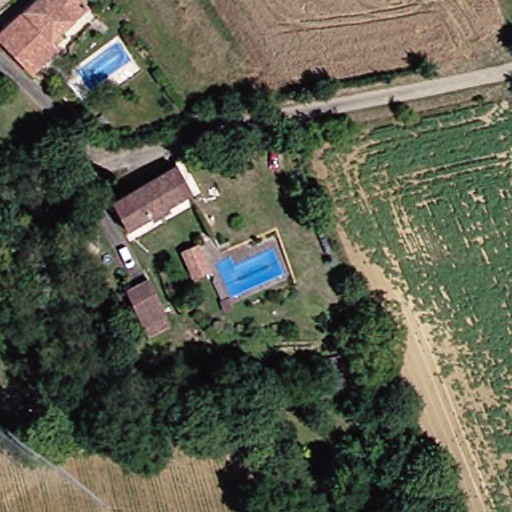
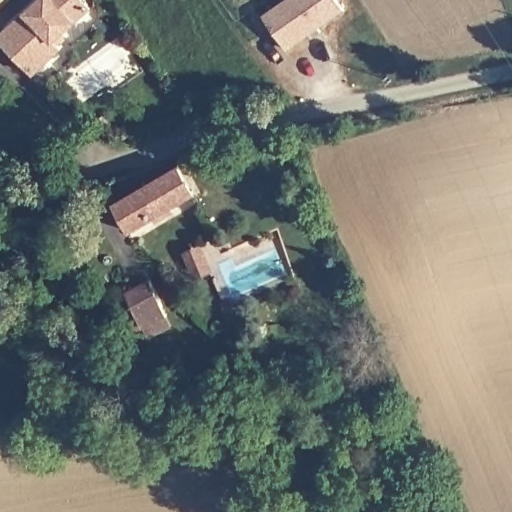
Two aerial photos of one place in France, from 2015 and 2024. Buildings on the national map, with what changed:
unchanged [(14,0),(0,12),(0,0),(14,0)]
unchanged [(54,44),(61,51),(34,76),(0,42),(0,36),(40,0),(80,0),(90,11),(54,44)]
new [(335,0),(344,13),(288,51),(263,16),(286,0),(335,0)]
unchanged [(105,117),(110,124),(104,129),(98,122),(105,117)]
unchanged [(131,230),(114,202),(176,169),(184,182),(192,197),(131,230)]
unchanged [(151,284),(167,325),(145,334),(129,293),(151,284)]

